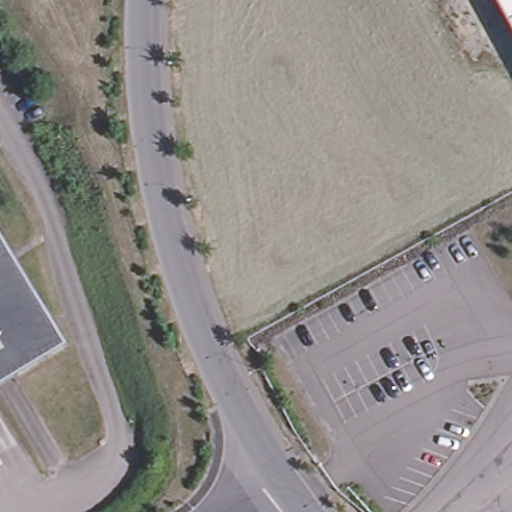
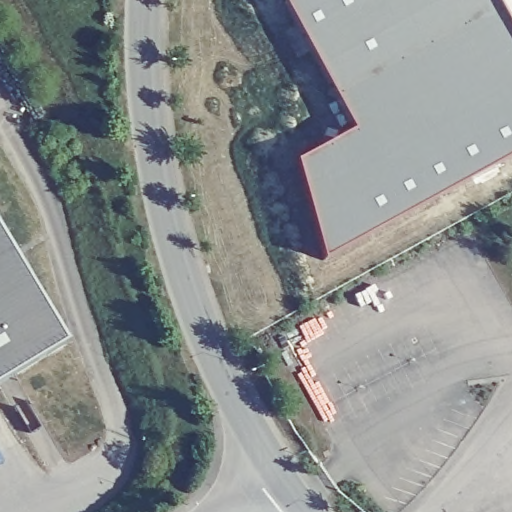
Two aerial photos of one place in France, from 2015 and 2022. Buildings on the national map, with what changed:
new [(512,30),(512,158),(322,262),(297,162),(352,131),(284,4),(290,0),(495,0),(512,30)]
unchanged [(495,0),(512,0),(512,30),(495,0)]
unchanged [(0,381),(0,228),(67,341),(0,381)]

